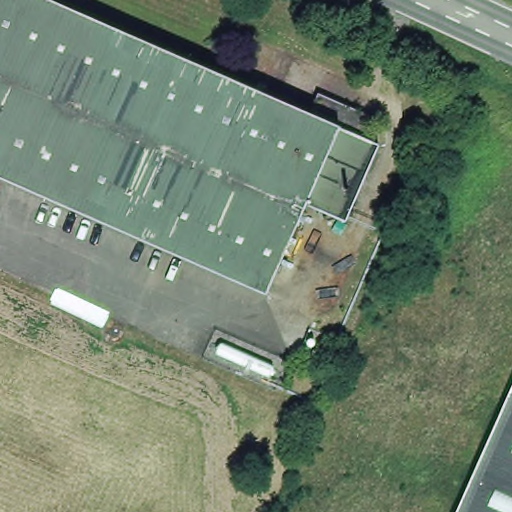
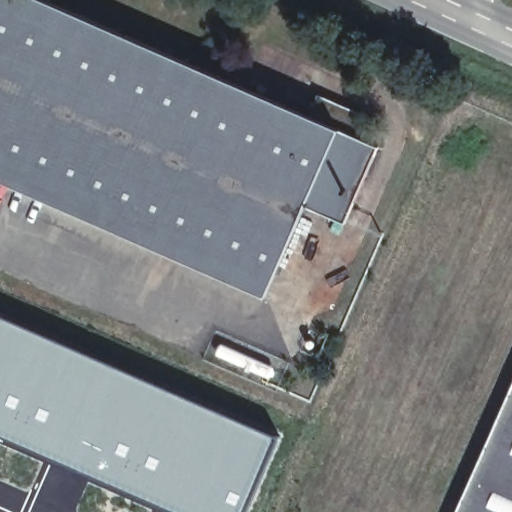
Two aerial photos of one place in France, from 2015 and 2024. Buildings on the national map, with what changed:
unchanged [(304,115),(334,126),(301,200),(259,292),(0,178),(0,0),(51,0),(304,115)]
unchanged [(334,126),(304,115),(316,89),(369,109),(361,137),(376,142),(343,215),(301,200),(334,126)]
new [(189,395),(279,433),(245,512),(175,512),(131,494),(94,476),(0,436),(0,312),(189,395)]
unchanged [(512,512),(450,512),(512,372),(512,512)]

